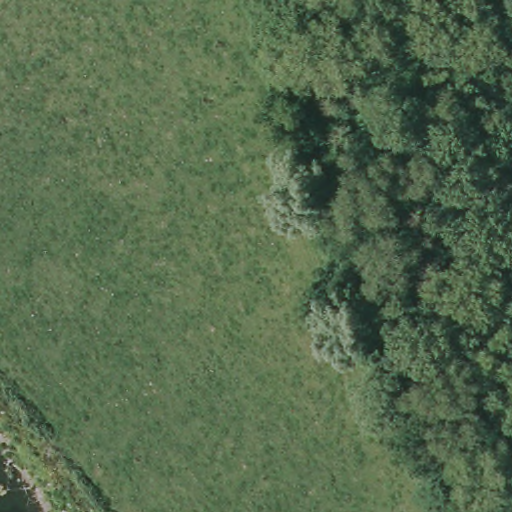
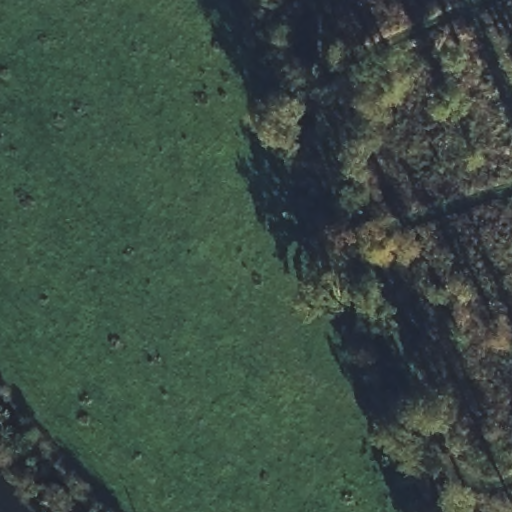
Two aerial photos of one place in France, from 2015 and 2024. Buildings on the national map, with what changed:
[]

